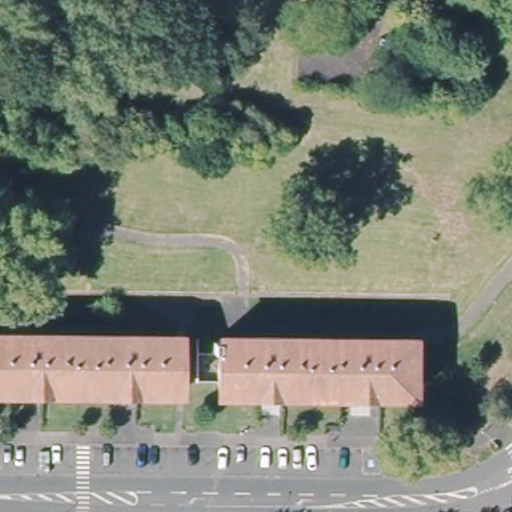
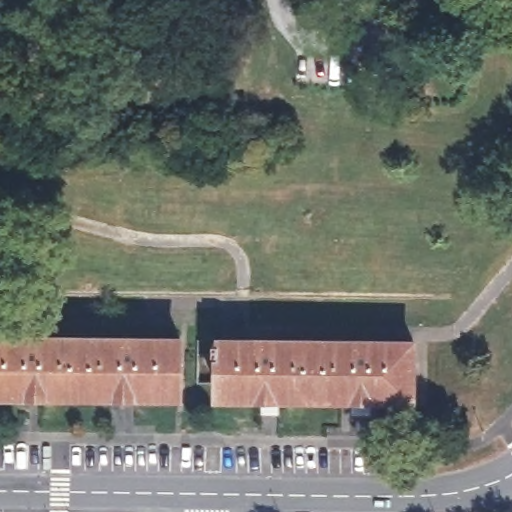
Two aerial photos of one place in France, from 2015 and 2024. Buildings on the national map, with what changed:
unchanged [(177,391),(0,389),(0,338),(177,340),(177,391)]
unchanged [(409,342),(408,393),(217,391),(218,341),(409,342)]

